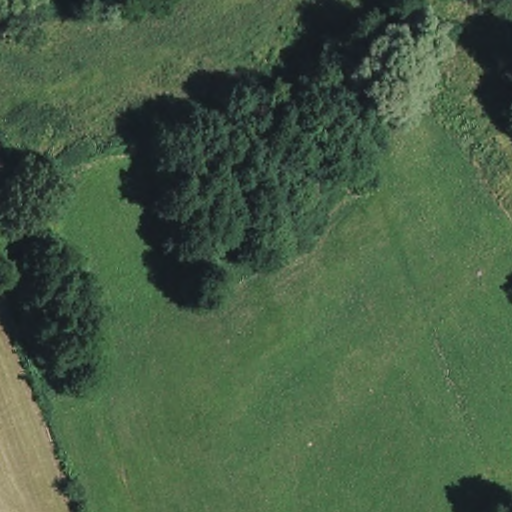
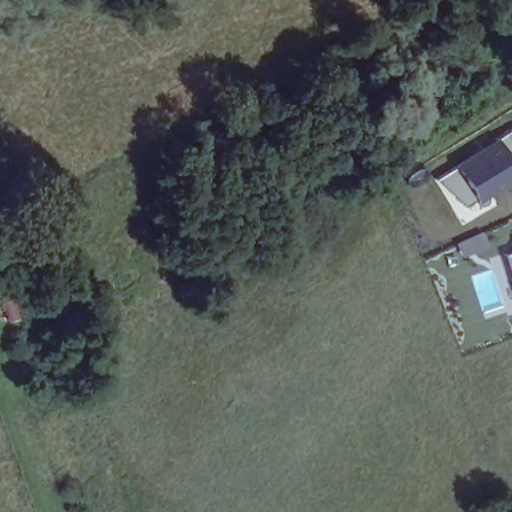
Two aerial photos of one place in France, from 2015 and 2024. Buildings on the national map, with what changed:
new [(512,126),(512,167),(493,137),(512,126)]
new [(493,137),(512,167),(512,178),(474,202),(463,207),(436,177),(450,165),(493,137)]
new [(483,228),(491,245),(463,257),(455,242),(483,228)]
new [(512,252),(512,274),(507,254),(512,252)]

